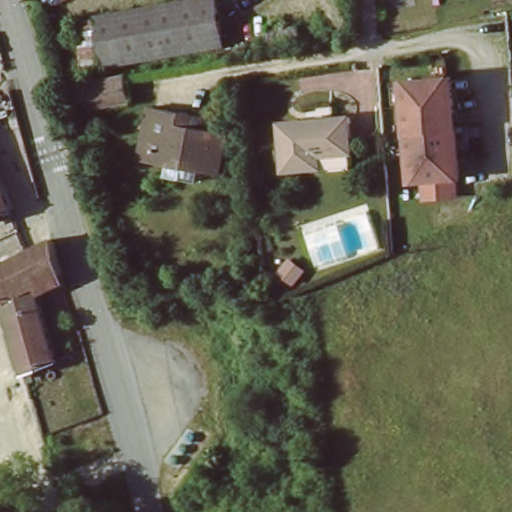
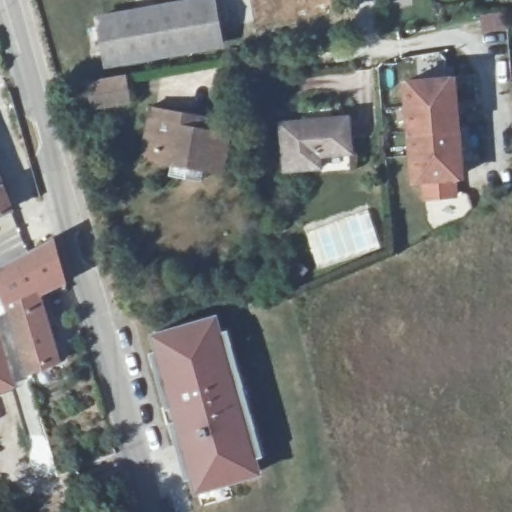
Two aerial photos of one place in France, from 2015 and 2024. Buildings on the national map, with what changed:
unchanged [(112,56),(103,14),(171,0),(213,0),(219,37),(112,56)]
unchanged [(120,72),(123,92),(87,101),(84,77),(120,72)]
unchanged [(445,77),(452,176),(410,179),(404,80),(445,77)]
unchanged [(175,165),(173,176),(147,170),(147,160),(136,158),(137,151),(141,135),(147,104),(187,111),(207,114),(203,130),(197,161),(196,167),(175,165)]
unchanged [(278,172),(275,123),(347,116),(350,156),(317,157),(318,169),(278,172)]
unchanged [(0,218),(0,190),(9,213),(0,218)]
unchanged [(60,273),(42,282),(47,297),(35,302),(53,359),(23,373),(0,291),(0,273),(3,270),(0,264),(0,263),(25,249),(29,255),(38,250),(50,242),(60,273)]
demolished [(507,335),(512,300),(512,337),(507,335)]
new [(217,312),(264,475),(197,493),(150,332),(217,312)]
unchanged [(0,398),(0,351),(17,389),(0,398)]

